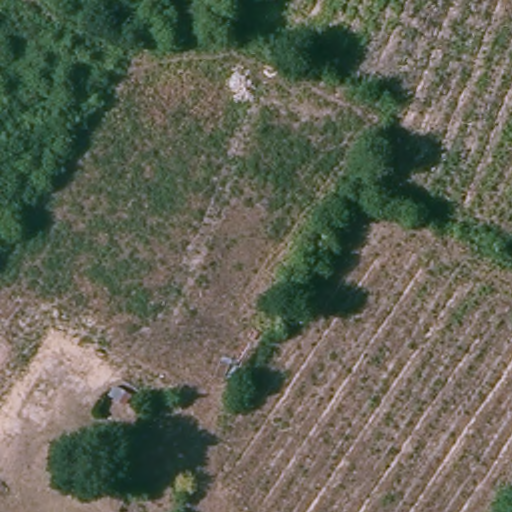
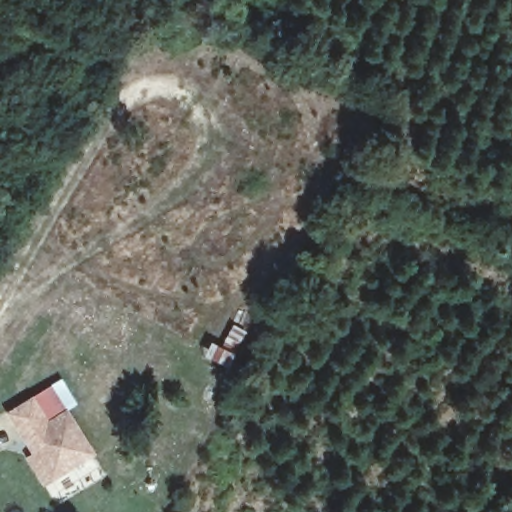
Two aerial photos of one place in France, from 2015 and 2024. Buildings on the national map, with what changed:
demolished [(20,417),(30,392),(21,387),(31,371),(62,389),(37,427),(20,417)]
new [(46,419),(67,408),(97,453),(42,485),(24,455),(27,452),(4,411),(31,394),(46,419)]

